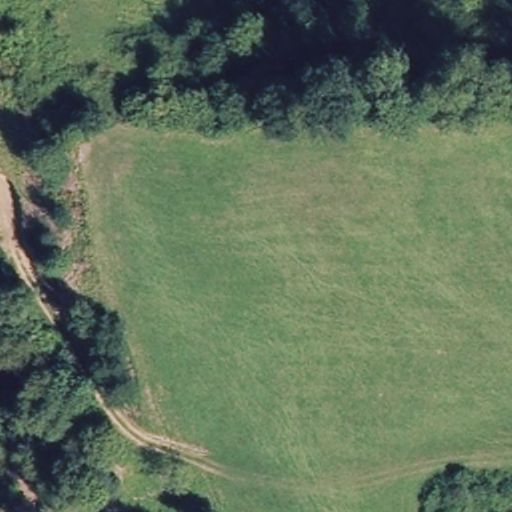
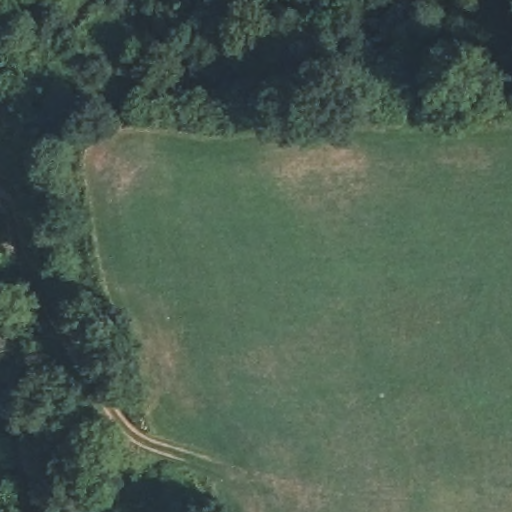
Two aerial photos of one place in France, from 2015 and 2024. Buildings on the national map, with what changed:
[]

